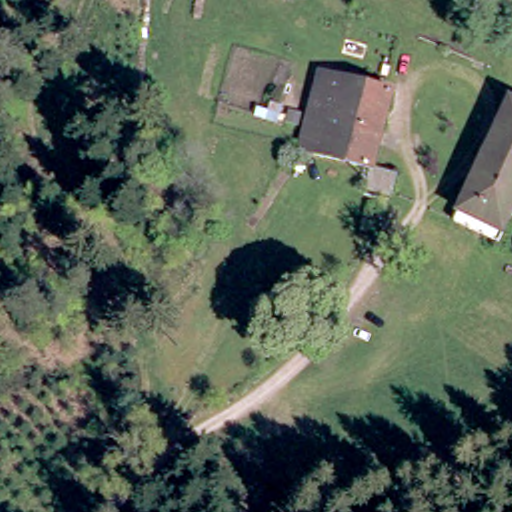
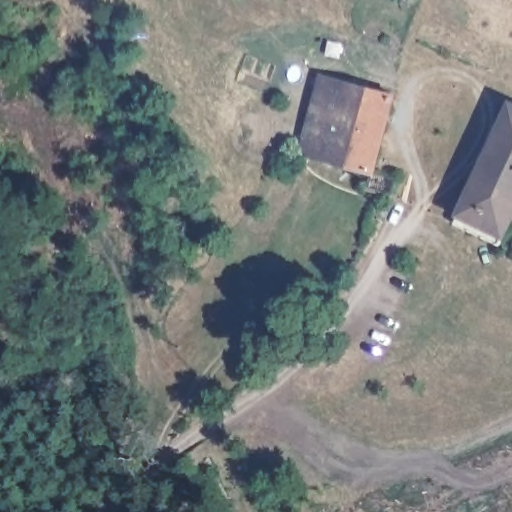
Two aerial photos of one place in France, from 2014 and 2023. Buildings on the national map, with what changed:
unchanged [(390,186),(363,179),(367,161),(299,141),(318,66),(392,86),(371,162),(394,169),(390,186)]
unchanged [(457,211),(509,100),(512,101),(512,211),(511,215),(504,230),(457,211)]

